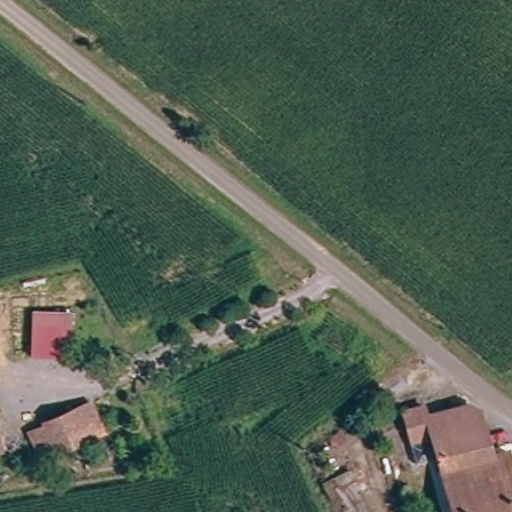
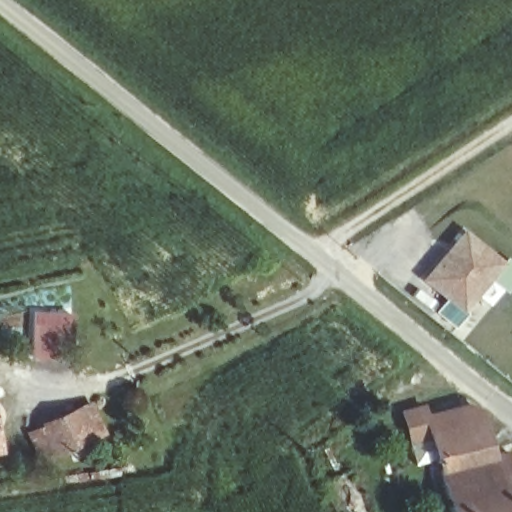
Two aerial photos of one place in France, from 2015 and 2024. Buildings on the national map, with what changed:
new [(505,264),(464,313),(425,280),(464,231),(505,264)]
unchanged [(34,327),(71,324),(74,366),(35,368),(34,327)]
unchanged [(98,432),(48,458),(37,438),(35,434),(50,425),(47,421),(84,404),(91,418),(98,432)]
unchanged [(420,450),(411,405),(428,404),(430,418),(470,412),(474,415),(476,416),(484,464),(497,463),(507,512),(444,512),(436,450),(420,450)]

